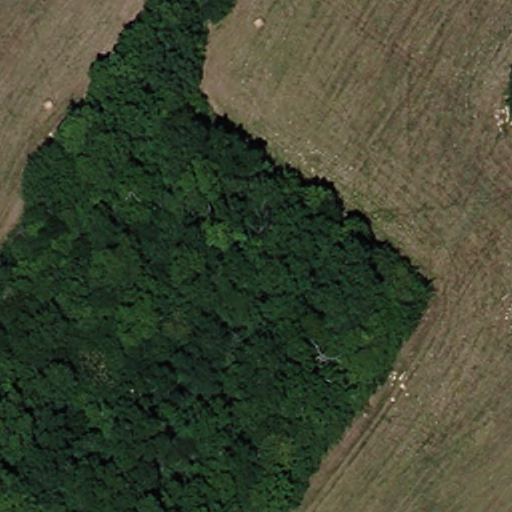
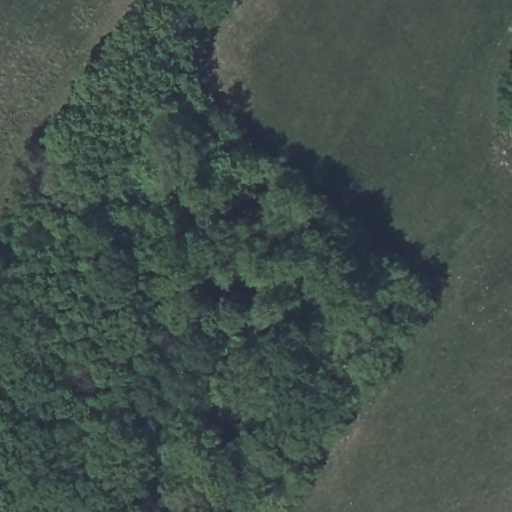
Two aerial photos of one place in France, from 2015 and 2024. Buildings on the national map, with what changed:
[]

